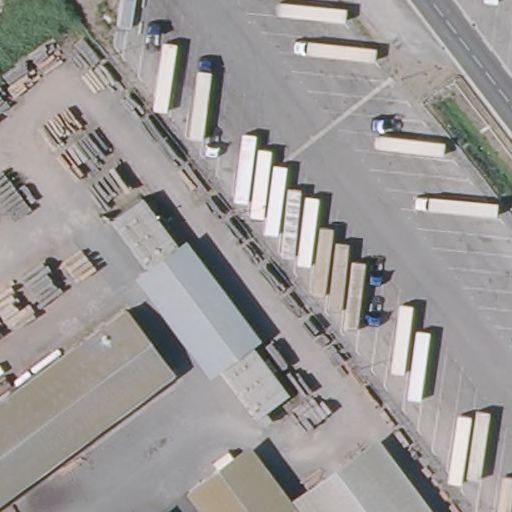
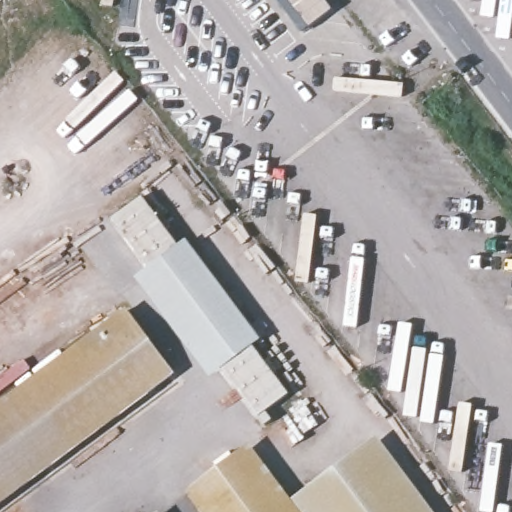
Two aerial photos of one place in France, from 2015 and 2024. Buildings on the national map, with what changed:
unchanged [(148,189),(186,240),(152,264),(115,214),(148,189)]
unchanged [(186,240),(192,235),(266,336),(260,340),(253,346),(221,368),(221,369),(216,372),(142,272),(152,264),(186,240)]
unchanged [(174,376),(0,503),(0,405),(127,310),(174,376)]
unchanged [(253,346),(289,396),(258,419),(221,369),(253,346)]
unchanged [(380,441),(432,512),(407,512),(363,452),(380,441)]
unchanged [(294,503),(310,492),(325,512),(275,512),(234,456),(250,445),(294,503)]
unchanged [(363,452),(407,512),(325,512),(310,492),(363,452)]
unchanged [(234,456),(275,512),(224,512),(201,480),(234,456)]
unchanged [(224,512),(201,512),(186,491),(201,480),(224,512)]
unchanged [(163,511),(164,512),(161,512),(163,511)]

